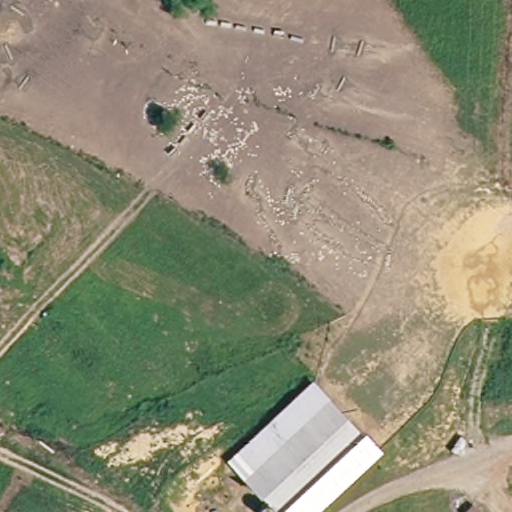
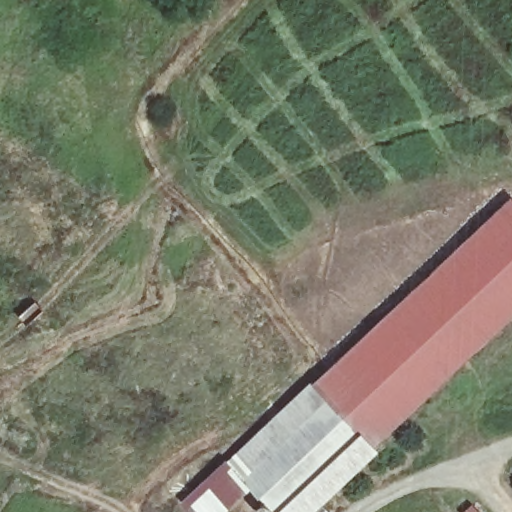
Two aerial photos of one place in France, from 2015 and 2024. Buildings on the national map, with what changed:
new [(512,321),(378,448),(314,381),(512,198),(512,321)]
unchanged [(314,381),(381,451),(317,512),(262,512),(268,504),(227,461),(314,381)]
new [(254,489),(229,512),(192,512),(181,501),(227,461),(254,489)]

